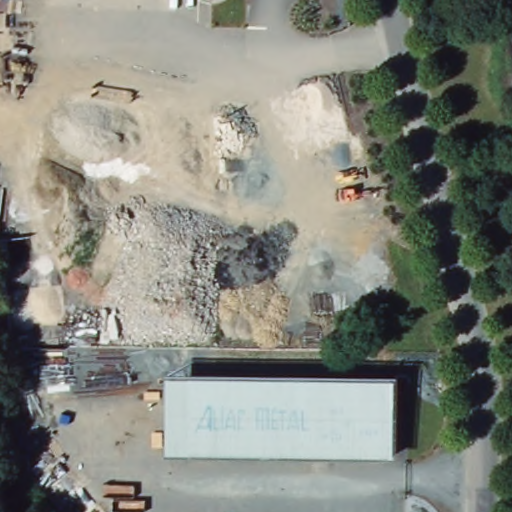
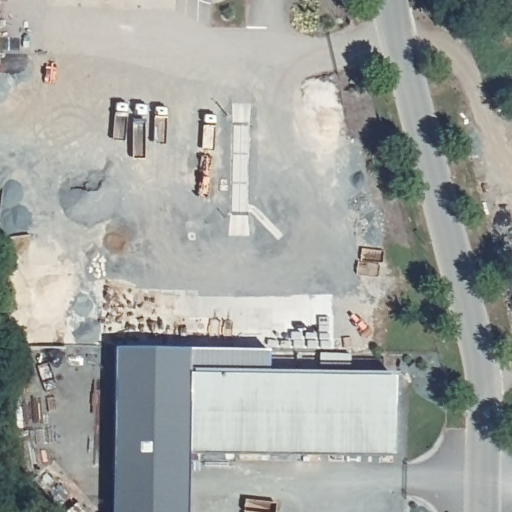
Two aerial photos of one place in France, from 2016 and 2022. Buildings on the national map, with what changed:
new [(188,351),(269,354),(270,377),(190,375),(166,375),(166,450),(189,450),(187,512),(113,512),(116,350),(188,351)]
unchanged [(190,375),(189,450),(166,450),(166,375),(190,375)]
unchanged [(398,379),(397,455),(189,450),(190,375),(398,379)]

